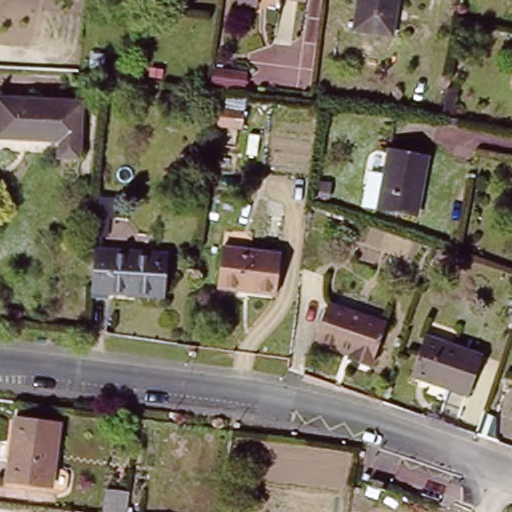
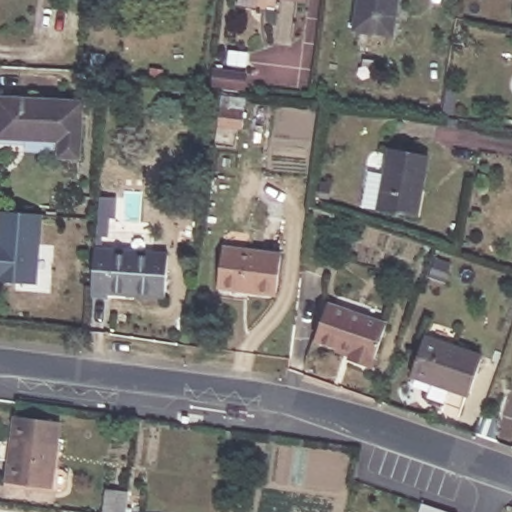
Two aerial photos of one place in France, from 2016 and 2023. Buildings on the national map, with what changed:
unchanged [(289,1),(282,0),(303,0),(302,2),(289,1)]
unchanged [(358,0),(399,0),(393,38),(353,32),(358,0)]
unchanged [(30,144),(0,142),(0,103),(32,105),(30,144)]
unchanged [(219,104),(244,107),(242,126),(216,124),(219,104)]
unchanged [(53,161),(53,145),(30,144),(32,105),(76,107),(73,162),(53,161)]
unchanged [(417,190),(414,217),(380,213),(380,212),(365,210),(368,177),(383,180),(386,152),(425,157),(421,191),(417,190)]
new [(0,211),(41,214),(37,283),(0,281),(0,211)]
unchanged [(95,253),(168,260),(165,302),(127,299),(92,296),(92,291),(95,253)]
unchanged [(217,293),(222,253),(265,258),(280,260),(275,300),(217,293)]
unchanged [(343,350),(308,338),(320,303),(380,323),(365,366),(342,357),(343,350)]
unchanged [(420,342),(480,361),(467,400),(408,380),(420,342)]
unchanged [(7,450),(3,450),(7,421),(52,428),(43,492),(2,486),(7,450)]
unchanged [(125,497),(123,512),(101,512),(103,494),(125,497)]

